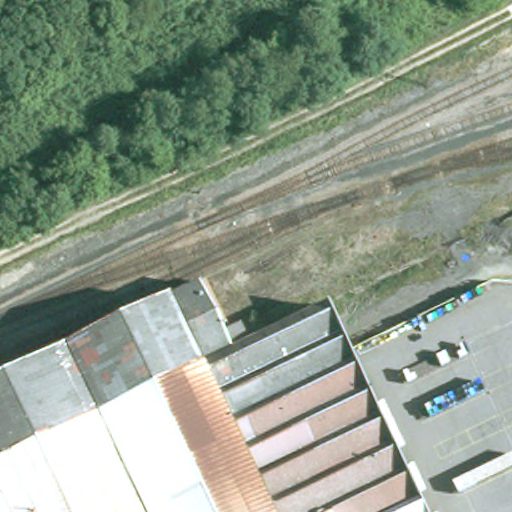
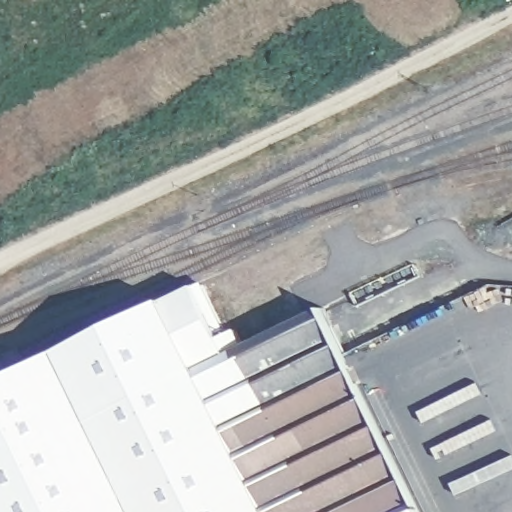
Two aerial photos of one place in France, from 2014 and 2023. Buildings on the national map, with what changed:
unchanged [(202,287),(234,351),(328,307),(425,512),(0,512),(0,383),(202,287)]

